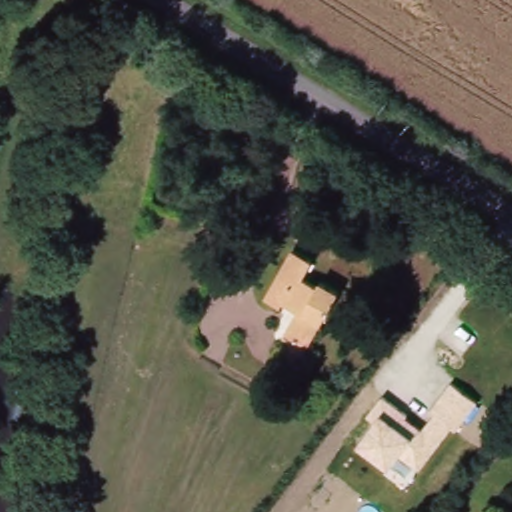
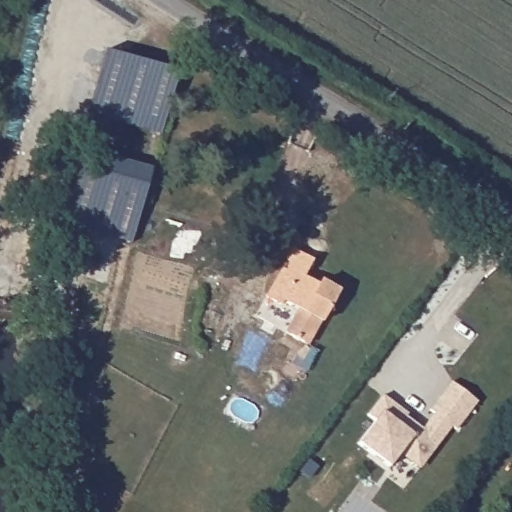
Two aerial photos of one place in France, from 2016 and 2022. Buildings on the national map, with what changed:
new [(102,49),(178,71),(160,133),(86,112),(102,49)]
new [(62,226),(81,150),(149,168),(130,244),(62,226)]
unchanged [(344,290),(327,324),(322,321),(310,345),(287,333),(299,309),(285,302),(283,306),(267,296),(293,247),(314,258),(305,276),(322,284),(324,279),(344,290)]
unchanged [(358,444),(375,421),(366,415),(382,395),(408,415),(406,418),(421,429),(433,414),(429,411),(451,382),(477,402),(455,431),(450,427),(419,470),(414,466),(406,477),(391,465),(388,468),(358,444)]

